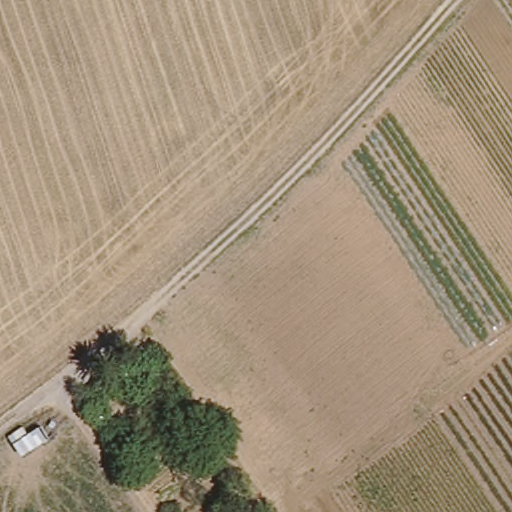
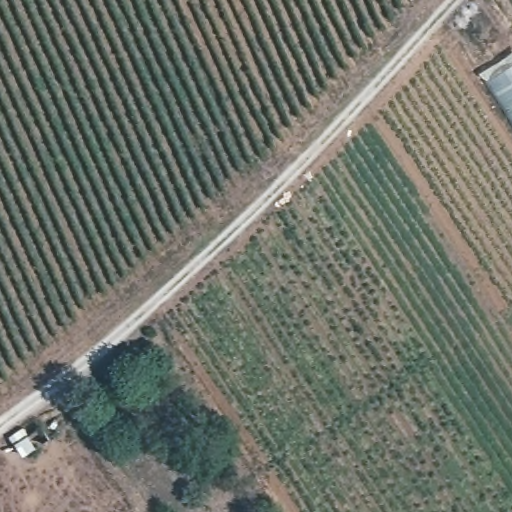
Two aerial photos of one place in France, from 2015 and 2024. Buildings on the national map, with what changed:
new [(512,65),(512,123),(485,81),(512,65)]
unchanged [(122,365),(137,353),(147,365),(131,377),(122,365)]
unchanged [(39,422),(50,439),(18,459),(7,442),(39,422)]

